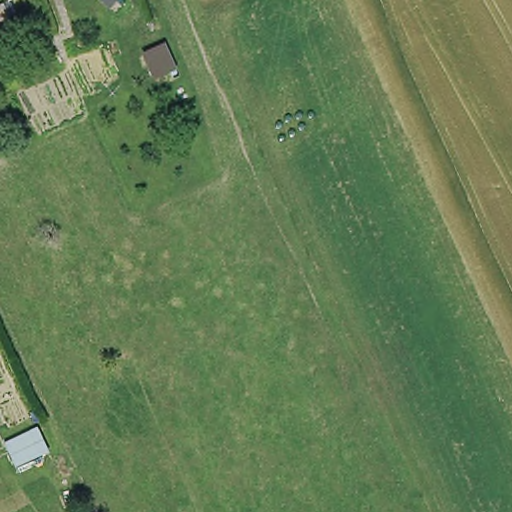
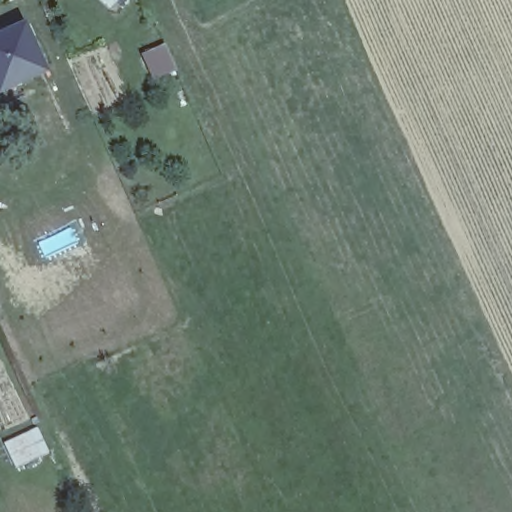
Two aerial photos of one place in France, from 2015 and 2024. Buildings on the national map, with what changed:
new [(0,97),(0,32),(24,21),(46,77),(0,97)]
unchanged [(167,72),(155,77),(145,54),(156,48),(166,44),(176,68),(167,72)]
unchanged [(5,441),(30,430),(41,455),(16,467),(5,441)]

